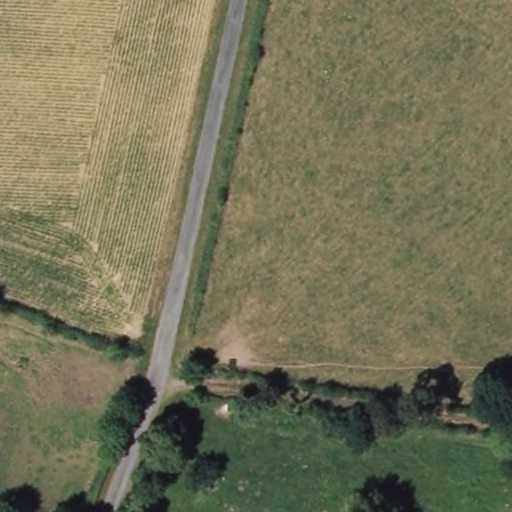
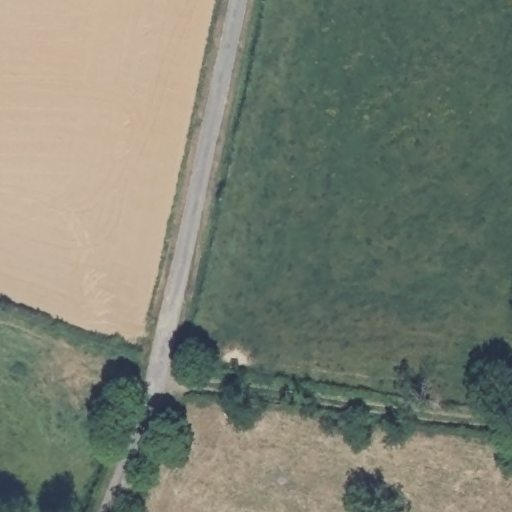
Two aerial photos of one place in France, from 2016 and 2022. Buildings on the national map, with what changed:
[]

